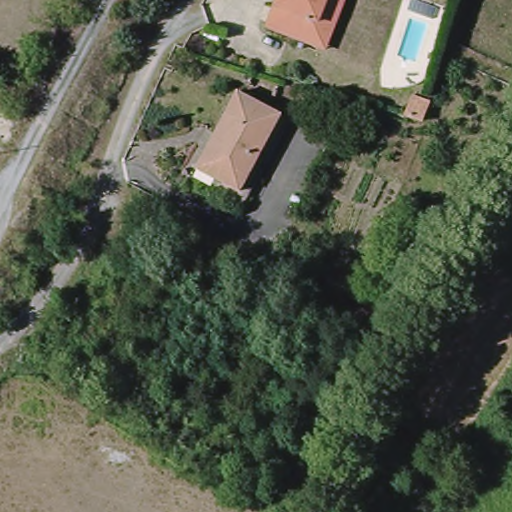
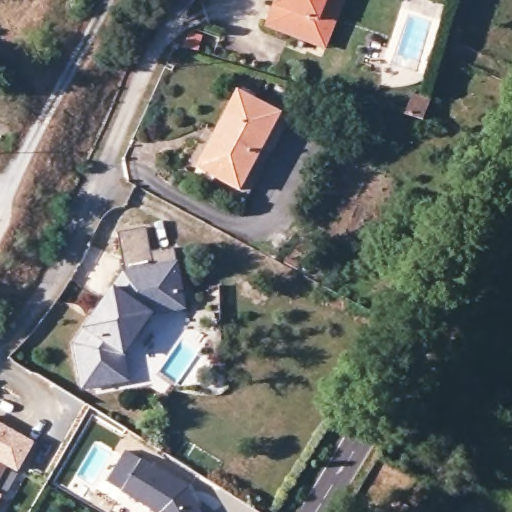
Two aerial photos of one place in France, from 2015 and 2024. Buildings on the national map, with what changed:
unchanged [(319,49),(267,29),(278,0),(338,0),(345,3),(326,51),(319,49)]
unchanged [(285,111),(242,187),(200,164),(242,89),(285,111)]
unchanged [(439,105),(432,125),(414,120),(421,100),(439,105)]
unchanged [(251,192),(246,201),(195,173),(200,164),(242,187),(285,111),(294,116),(251,192)]
new [(186,311),(152,317),(126,355),(130,382),(81,391),(73,345),(125,270),(118,234),(147,228),(151,252),(175,249),(186,311)]
unchanged [(512,252),(512,265),(506,261),(512,251),(512,252)]
unchanged [(512,393),(512,399),(509,397),(512,393)]
new [(35,443),(18,473),(7,468),(0,481),(0,424),(35,443)]
new [(209,512),(160,512),(128,492),(147,462),(192,490),(209,512)]
new [(2,496),(0,500),(0,496),(2,496)]

